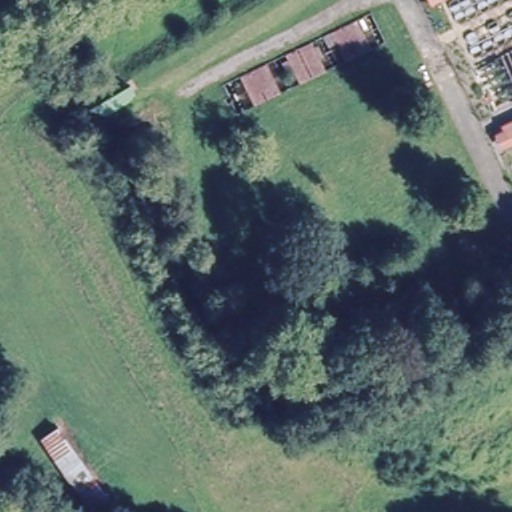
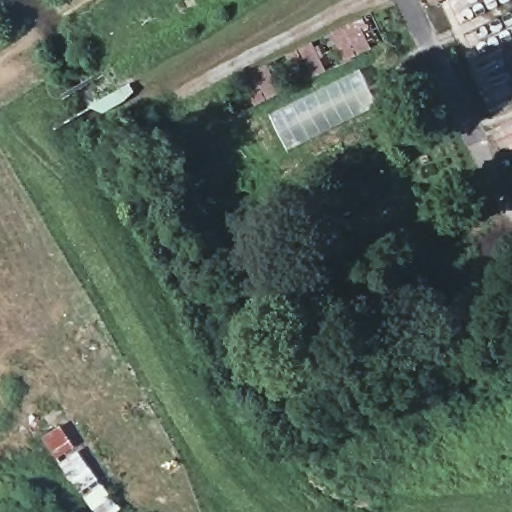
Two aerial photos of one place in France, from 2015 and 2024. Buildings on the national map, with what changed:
demolished [(431,8),(427,0),(450,0),(431,8)]
new [(431,5),(429,0),(441,0),(431,5)]
new [(377,105),(288,149),(268,112),(360,68),(377,105)]
demolished [(495,134),(504,131),(502,125),(512,121),(512,145),(501,150),(495,134)]
unchanged [(87,512),(35,438),(55,424),(106,500),(90,512),(87,512)]

